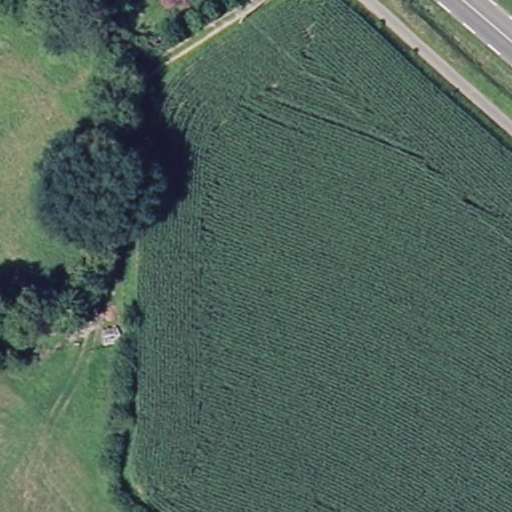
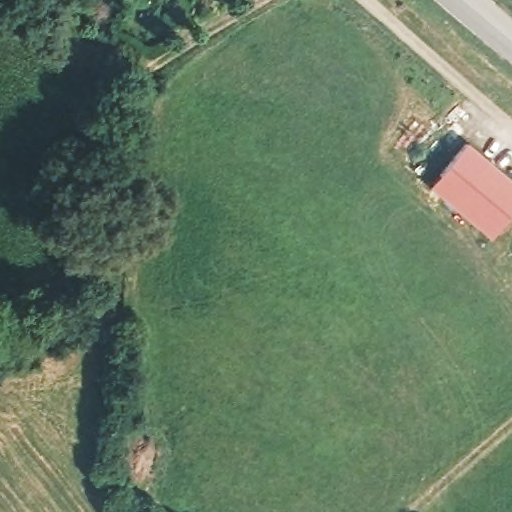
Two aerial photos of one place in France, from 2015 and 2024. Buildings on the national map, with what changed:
new [(456,147),(512,193),(512,198),(489,226),(430,179),(456,147)]

